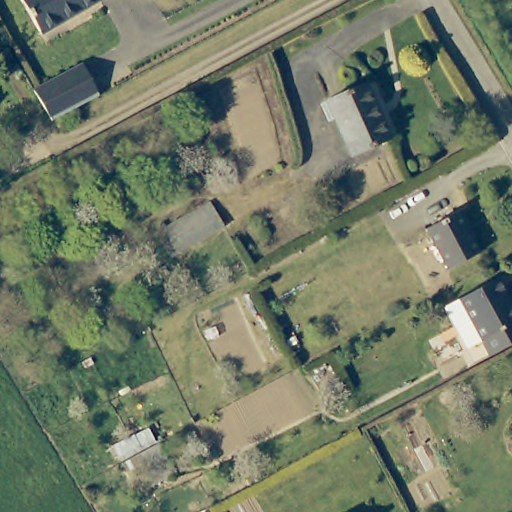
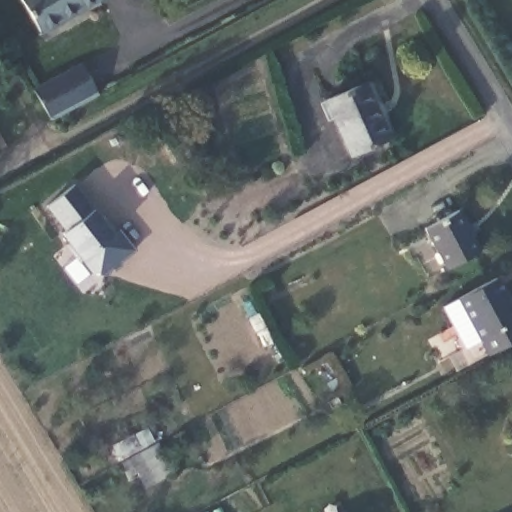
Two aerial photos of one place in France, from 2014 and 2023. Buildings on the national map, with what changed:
unchanged [(41,38),(17,0),(105,0),(41,38)]
unchanged [(99,93),(51,119),(33,89),(81,63),(99,93)]
unchanged [(324,99),(372,78),(396,135),(349,155),(324,99)]
new [(75,184),(94,207),(114,232),(119,229),(136,250),(106,277),(92,275),(80,261),(77,264),(64,246),(68,241),(61,232),(46,207),(75,184)]
demolished [(171,233),(215,209),(222,219),(178,244),(171,233)]
unchanged [(431,234),(465,214),(474,230),(469,233),(482,256),(453,272),(431,234)]
unchanged [(464,341),(441,301),(494,271),(512,304),(512,335),(467,359),(458,345),(464,341)]
unchanged [(162,462),(140,474),(129,457),(152,445),(162,462)]

